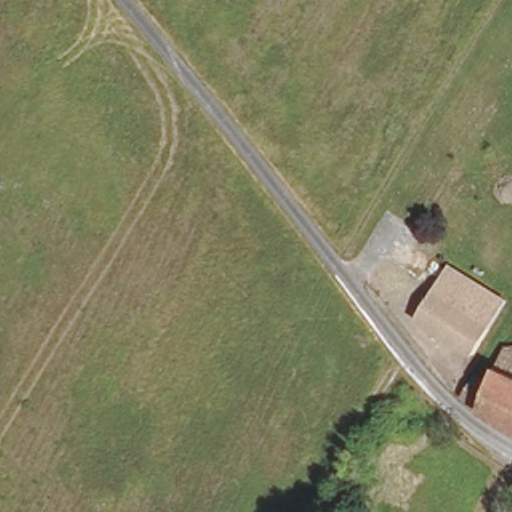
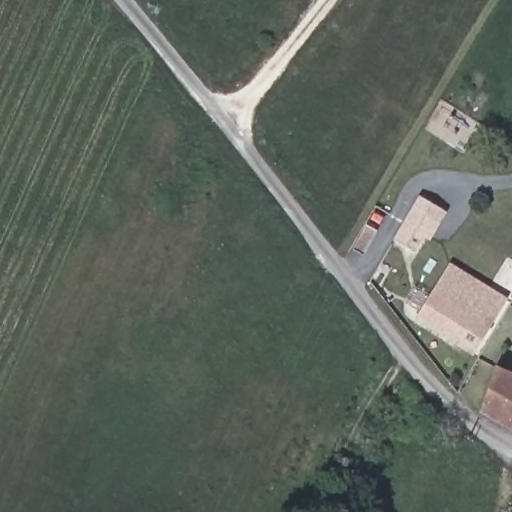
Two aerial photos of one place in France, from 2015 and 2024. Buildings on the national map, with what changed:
new [(431,242),(425,238),(416,253),(393,240),(420,194),(448,211),(431,242)]
unchanged [(418,313),(448,268),(500,304),(470,348),(418,313)]
unchanged [(480,420),(455,396),(474,375),(487,381),(492,369),(505,341),(512,342),(512,438),(480,420)]

